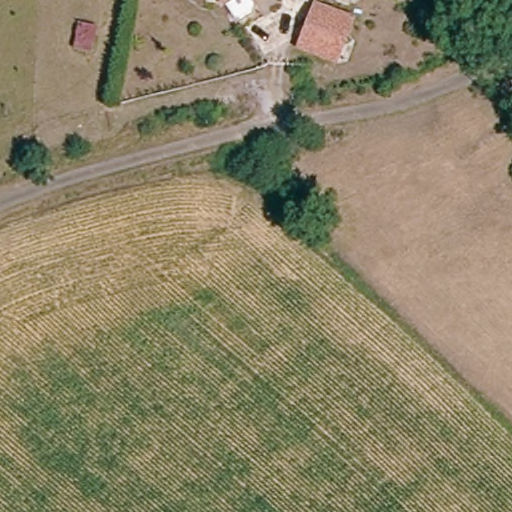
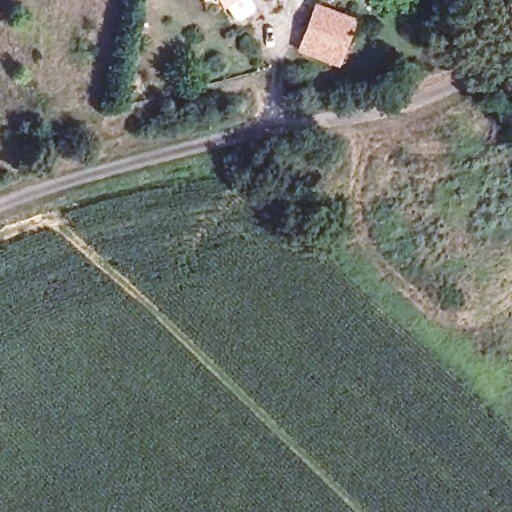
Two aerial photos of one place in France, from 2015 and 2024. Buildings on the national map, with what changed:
unchanged [(230,12),(223,0),(248,0),(230,12)]
unchanged [(354,19),(335,67),(295,51),(313,4),(354,19)]

